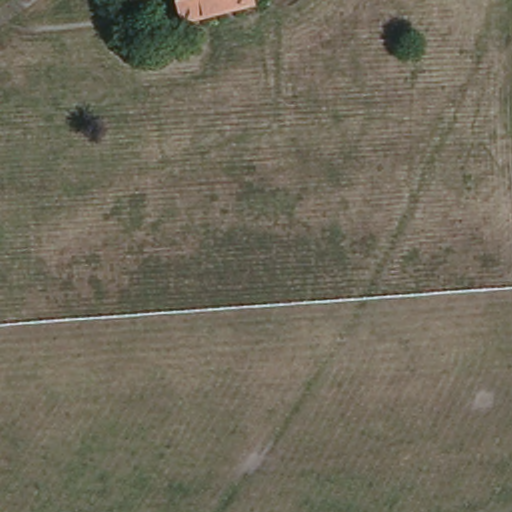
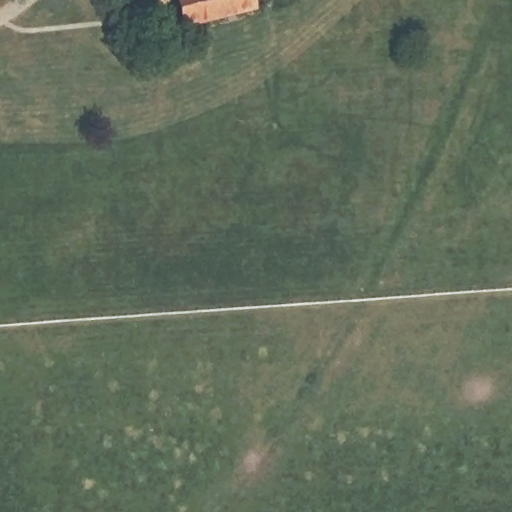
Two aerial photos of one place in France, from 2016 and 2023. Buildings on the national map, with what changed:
unchanged [(181,25),(175,0),(255,0),(257,9),(181,25)]

